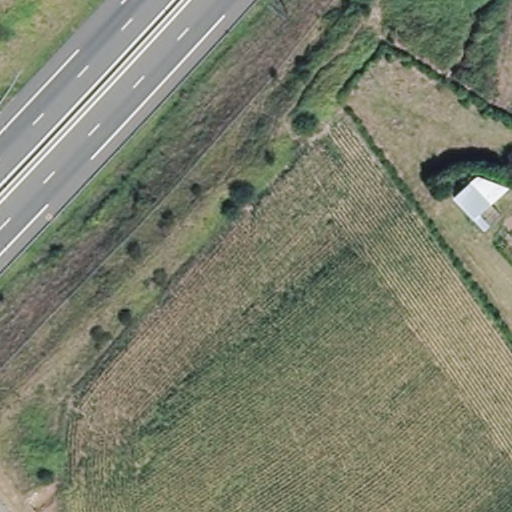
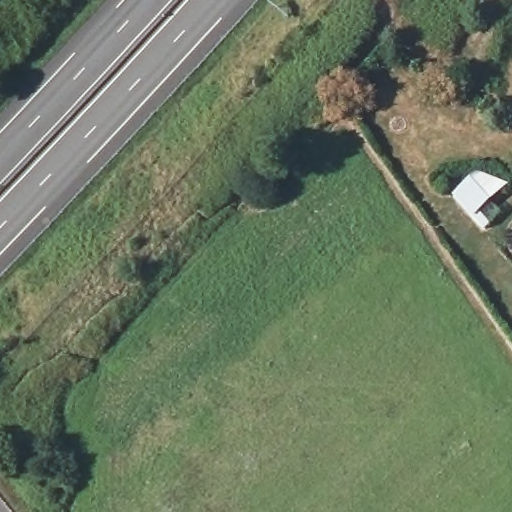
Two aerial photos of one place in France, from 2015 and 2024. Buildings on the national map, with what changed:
unchanged [(482,231),(472,221),(450,201),(478,173),(507,187),(480,214),(491,225),(482,231)]

